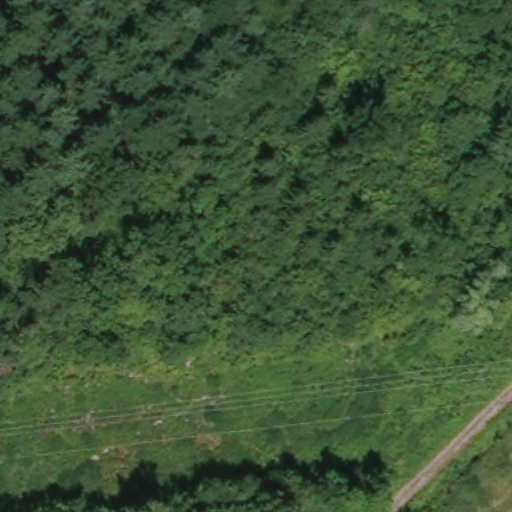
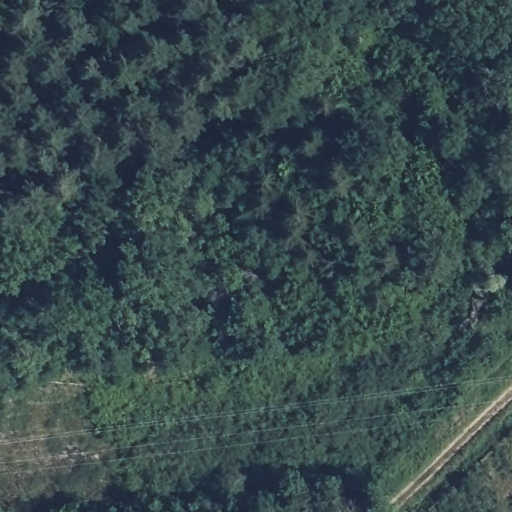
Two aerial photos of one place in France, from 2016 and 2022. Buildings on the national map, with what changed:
[]

